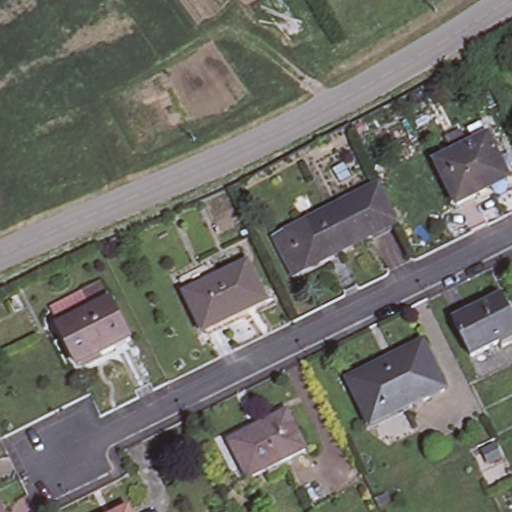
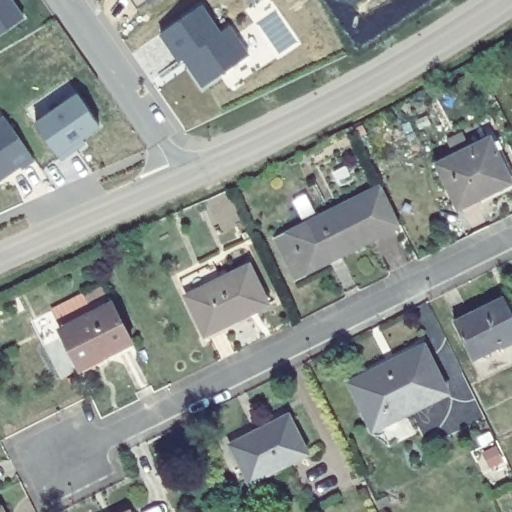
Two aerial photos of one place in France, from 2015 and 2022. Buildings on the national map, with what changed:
new [(0,38),(0,0),(16,0),(28,18),(0,38)]
new [(148,6),(146,2),(137,10),(130,0),(157,0),(148,6)]
new [(183,59),(178,62),(158,36),(201,5),(221,31),(229,25),(248,55),(202,87),(183,59)]
new [(34,122),(78,93),(100,127),(83,140),(84,142),(60,159),(34,122)]
new [(32,159),(0,180),(0,118),(4,115),(32,159)]
unchanged [(506,182),(457,207),(436,163),(484,139),(506,182)]
unchanged [(384,185),(404,224),(376,237),(356,199),(384,185)]
unchanged [(280,236),(293,230),(356,199),(376,237),(313,268),(299,275),(280,236)]
unchanged [(270,301),(205,333),(186,296),(251,263),(270,301)]
unchanged [(512,315),(512,343),(502,348),(499,343),(471,357),(452,319),(503,295),(512,315)]
unchanged [(133,343),(80,370),(61,331),(90,317),(86,307),(108,297),(133,343)]
unchanged [(445,393),(373,427),(351,382),(422,347),(445,393)]
unchanged [(306,458),(253,485),(234,447),(288,421),(306,458)]

